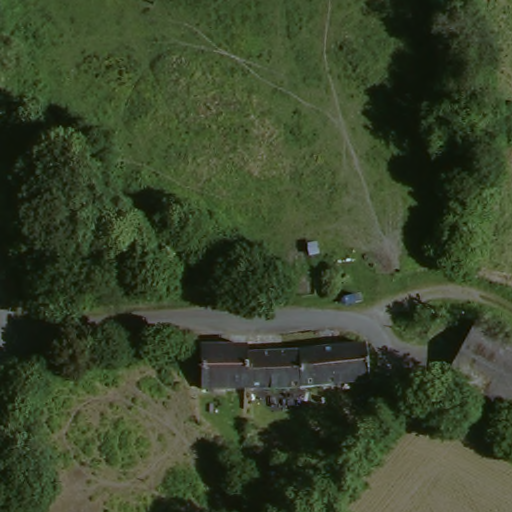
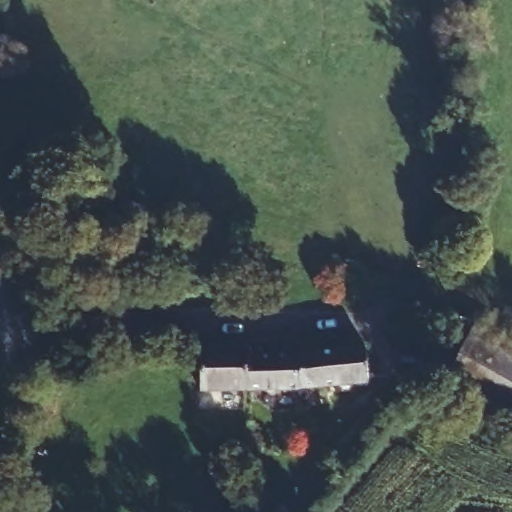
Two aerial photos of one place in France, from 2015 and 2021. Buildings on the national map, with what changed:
unchanged [(445,376),(479,321),(512,340),(512,416),(445,376)]
unchanged [(199,390),(198,347),(242,344),(244,351),(247,387),(199,390)]
unchanged [(366,380),(247,387),(244,351),(364,345),(366,380)]

